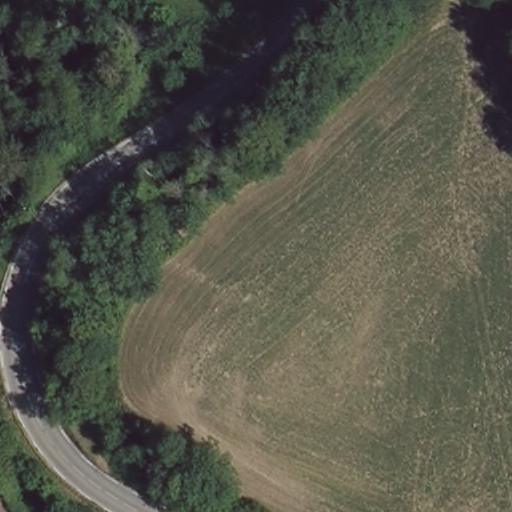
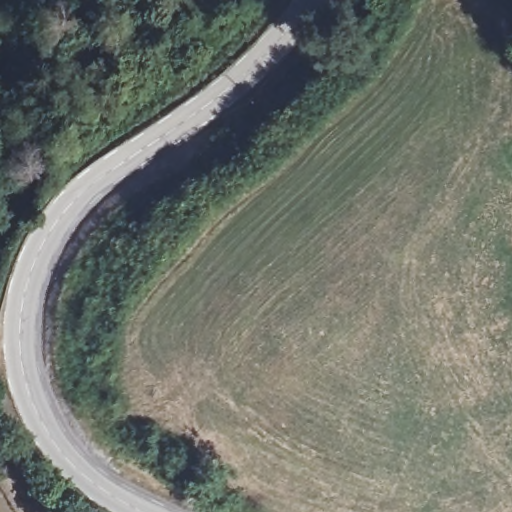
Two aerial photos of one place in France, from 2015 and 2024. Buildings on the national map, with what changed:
[]

